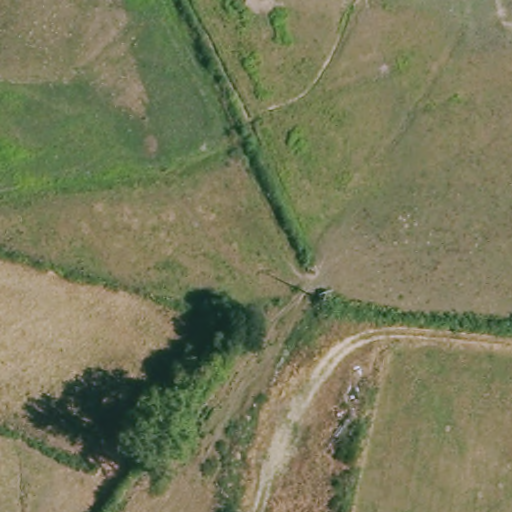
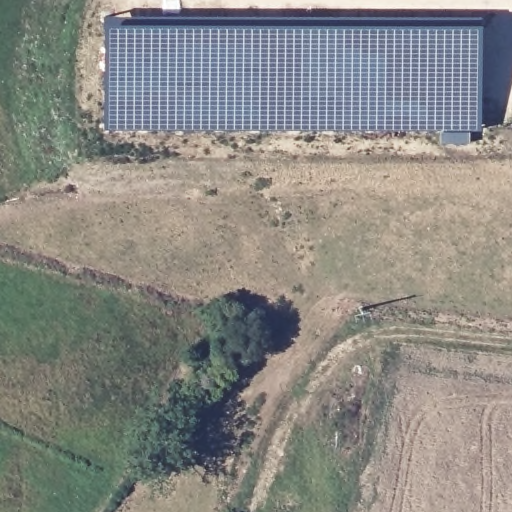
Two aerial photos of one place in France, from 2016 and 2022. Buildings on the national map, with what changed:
unchanged [(430,1),(425,0),(430,0),(430,1)]
new [(480,130),(109,125),(110,20),(485,24),(480,130)]
new [(439,139),(469,139),(468,149),(439,149),(439,139)]

